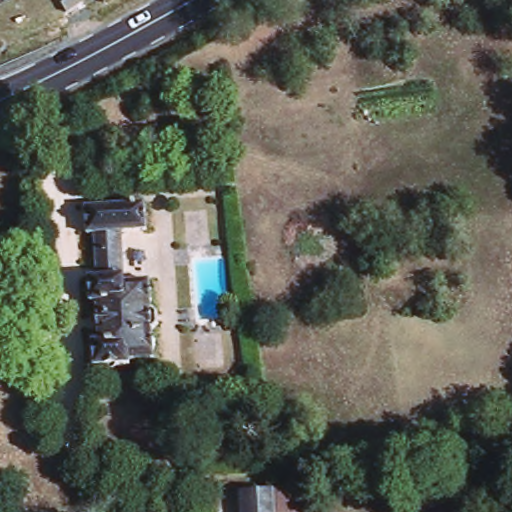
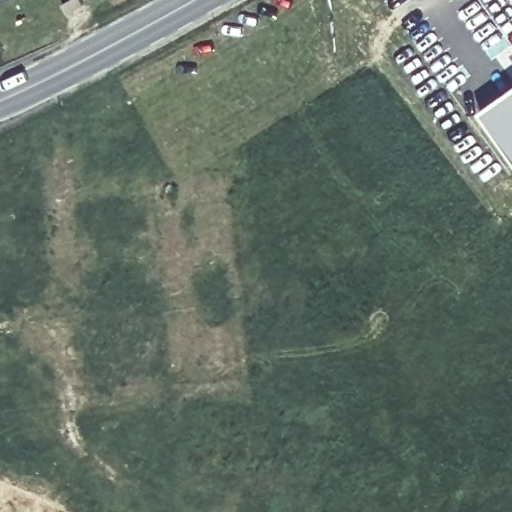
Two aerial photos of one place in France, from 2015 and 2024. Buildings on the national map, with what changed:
unchanged [(83,5),(67,14),(62,5),(69,0),(80,0),(83,5)]
new [(512,156),(478,110),(512,85),(512,156)]
demolished [(149,231),(122,233),(125,282),(149,280),(155,358),(132,361),(132,367),(95,370),(91,280),(99,278),(95,236),(86,237),(85,209),(147,205),(149,231)]
demolished [(265,493),(266,512),(242,512),(241,495),(265,493)]

